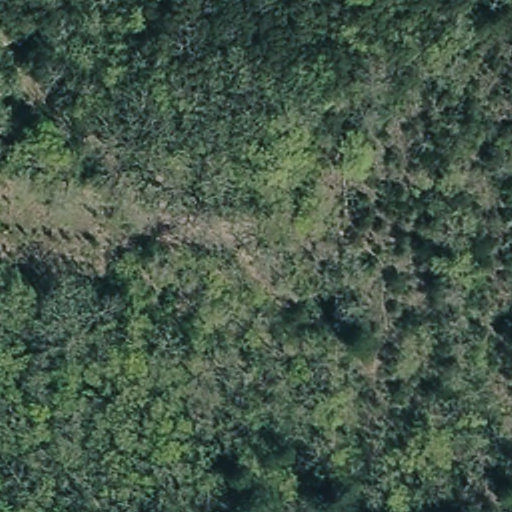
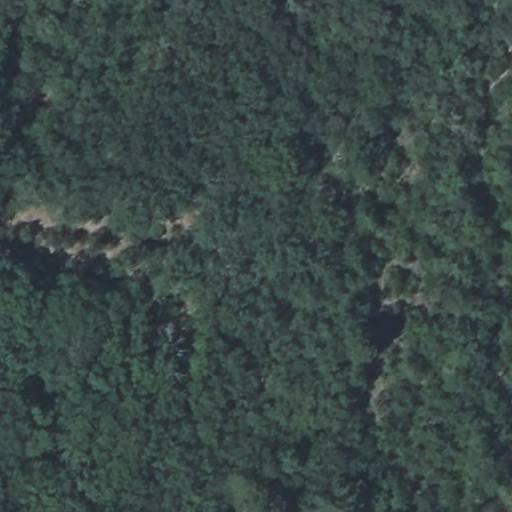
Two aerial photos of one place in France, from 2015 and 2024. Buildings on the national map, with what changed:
[]

